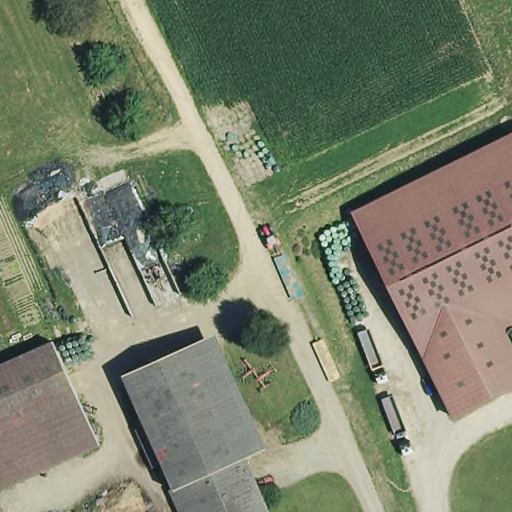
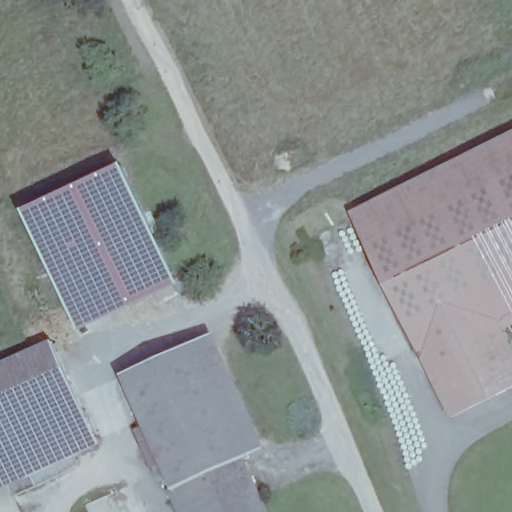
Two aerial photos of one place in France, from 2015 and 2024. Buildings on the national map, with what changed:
unchanged [(512,131),(512,312),(494,320),(492,316),(417,353),(347,212),(512,131)]
new [(136,165),(187,288),(90,331),(37,212),(136,165)]
demolished [(79,202),(128,179),(181,294),(132,316),(79,202)]
unchanged [(494,320),(512,356),(512,385),(448,416),(417,353),(492,316),(494,320)]
unchanged [(137,431),(147,427),(123,374),(227,336),(277,444),(243,458),(175,489),(162,461),(152,465),(137,431)]
unchanged [(59,346),(100,437),(7,478),(0,481),(0,373),(59,346)]
unchanged [(175,489),(243,458),(267,512),(182,512),(172,490),(175,489)]

